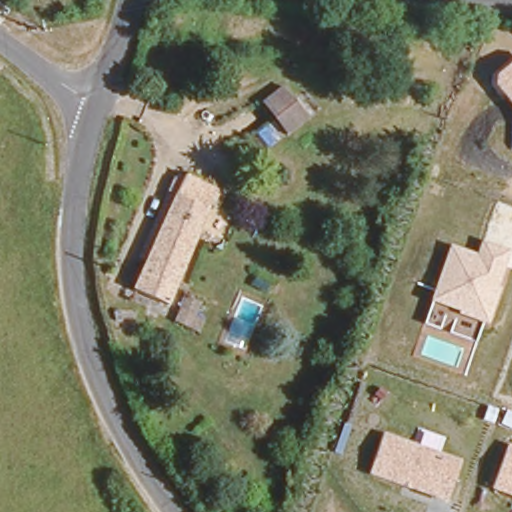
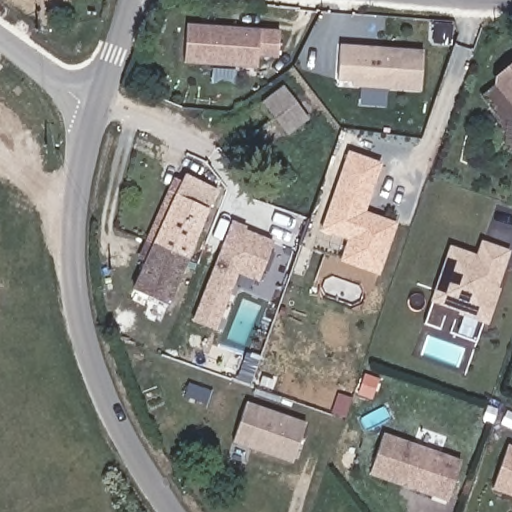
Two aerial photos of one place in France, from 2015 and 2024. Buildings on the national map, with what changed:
new [(280,30),(278,59),(259,58),(259,66),(183,63),(187,23),(259,28),(280,30)]
new [(352,82),(337,81),(340,44),(424,49),(422,90),(351,87),(352,82)]
unchanged [(512,66),(512,106),(494,82),(512,66)]
unchanged [(322,113),(327,121),(305,135),(285,108),(281,101),(304,87),(322,113)]
new [(366,212),(398,222),(379,275),(339,261),(347,240),(320,231),(347,151),(382,163),(366,212)]
unchanged [(188,172),(223,191),(165,305),(132,284),(147,253),(179,188),(188,172)]
unchanged [(147,253),(132,244),(163,182),(179,188),(147,253)]
new [(239,274),(216,331),(192,321),(231,220),(246,225),(244,228),(276,240),(258,282),(239,274)]
unchanged [(479,258),(484,244),(505,251),(486,318),(436,301),(451,248),(479,258)]
demolished [(186,298),(202,307),(194,323),(178,313),(186,298)]
new [(292,463),(232,442),(246,401),(306,421),(292,463)]
unchanged [(448,498),(371,472),(385,435),(461,460),(448,498)]
unchanged [(507,445),(512,447),(512,497),(492,489),(507,445)]

